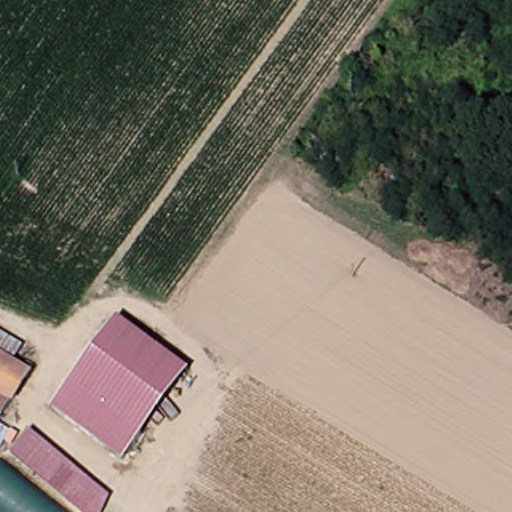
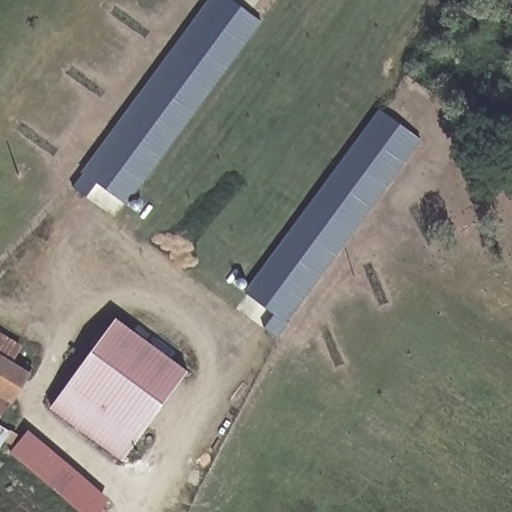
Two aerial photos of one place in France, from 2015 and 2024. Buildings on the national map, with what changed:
new [(87,197),(74,187),(212,0),(231,0),(262,24),(128,205),(97,183),(87,197)]
new [(380,110),(421,141),(283,328),(273,320),(277,315),(245,292),(380,110)]
unchanged [(116,319),(187,370),(140,436),(70,383),(116,319)]
unchanged [(16,361),(35,372),(4,423),(0,421),(0,330),(26,345),(16,361)]
unchanged [(51,409),(70,383),(140,436),(123,460),(105,447),(61,416),(51,409)]
new [(11,428),(0,451),(0,421),(4,423),(11,428)]
new [(103,512),(82,512),(11,455),(29,431),(110,497),(103,512)]
unchanged [(0,462),(2,460),(67,512),(7,512),(0,507),(0,462)]

